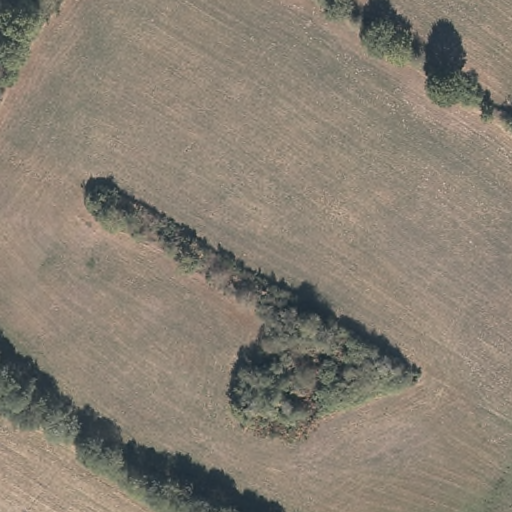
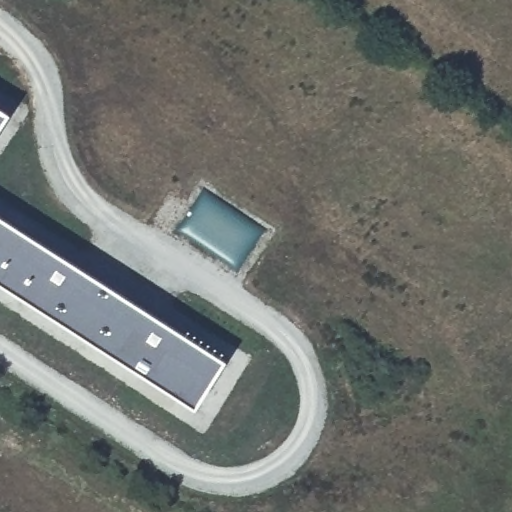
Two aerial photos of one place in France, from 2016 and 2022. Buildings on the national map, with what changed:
new [(0,127),(0,107),(9,113),(0,127)]
new [(224,359),(194,409),(0,283),(0,214),(224,359)]

